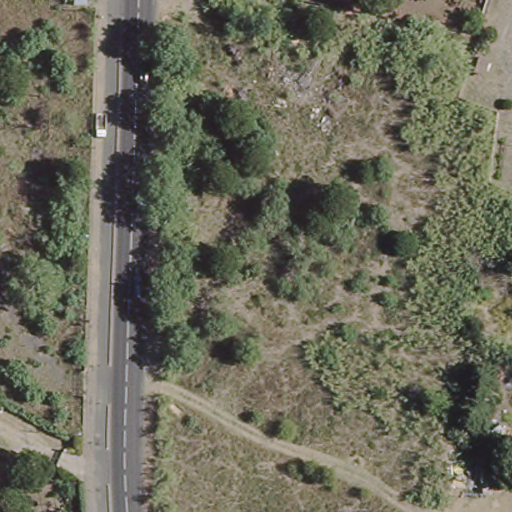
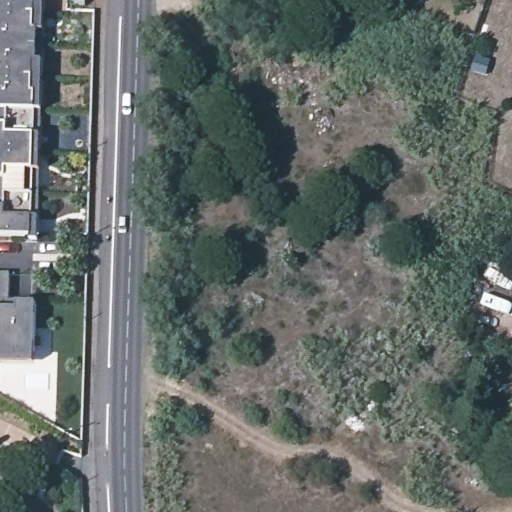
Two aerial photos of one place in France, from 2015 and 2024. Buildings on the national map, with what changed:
new [(43,108),(35,109),(37,237),(0,235),(0,0),(41,0),(43,108)]
unchanged [(86,10),(72,9),(72,0),(86,0),(86,10)]
new [(12,299),(21,299),(21,300),(36,301),(37,364),(0,364),(0,271),(12,271),(12,299)]

